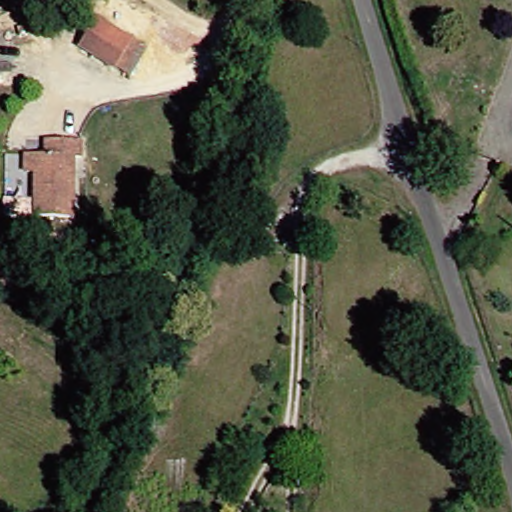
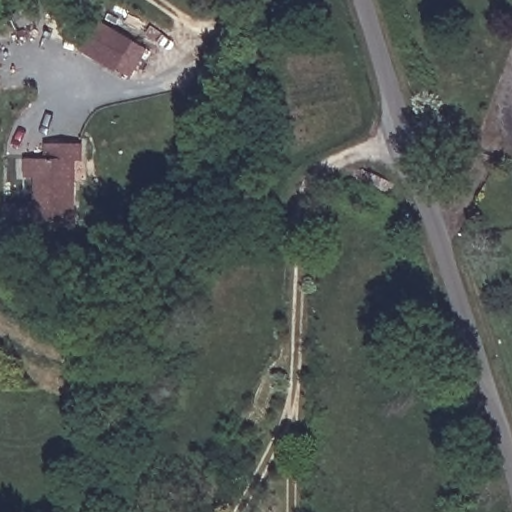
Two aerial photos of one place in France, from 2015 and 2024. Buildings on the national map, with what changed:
unchanged [(118,77),(79,53),(103,22),(137,47),(118,77)]
unchanged [(27,220),(30,179),(22,180),(24,164),(43,164),(45,144),(83,147),(81,165),(71,164),(65,224),(27,220)]

